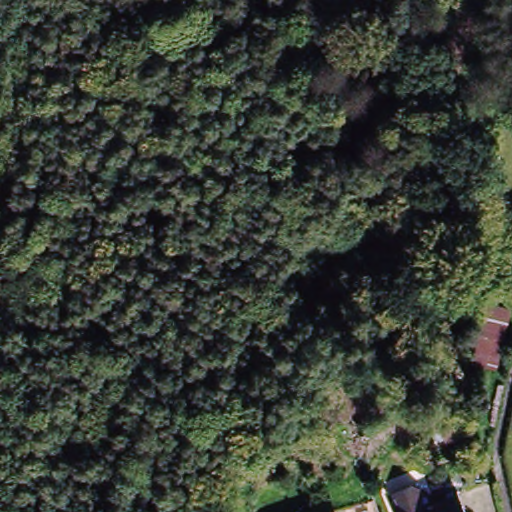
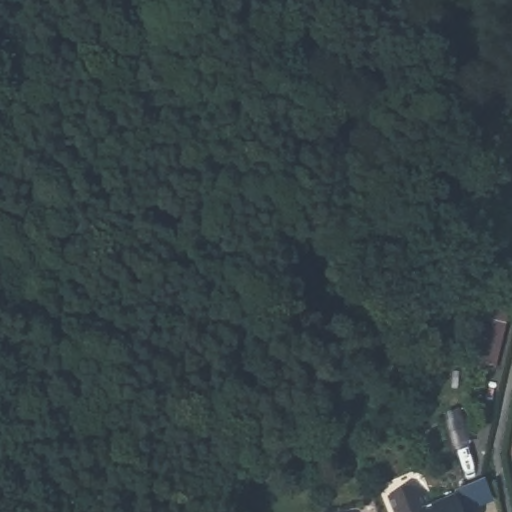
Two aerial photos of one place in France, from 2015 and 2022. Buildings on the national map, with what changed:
unchanged [(443,269),(445,292),(423,293),(422,270),(443,269)]
unchanged [(417,493),(430,499),(435,512),(398,512),(394,502),(417,493)]
unchanged [(435,512),(462,502),(466,512),(435,512)]

